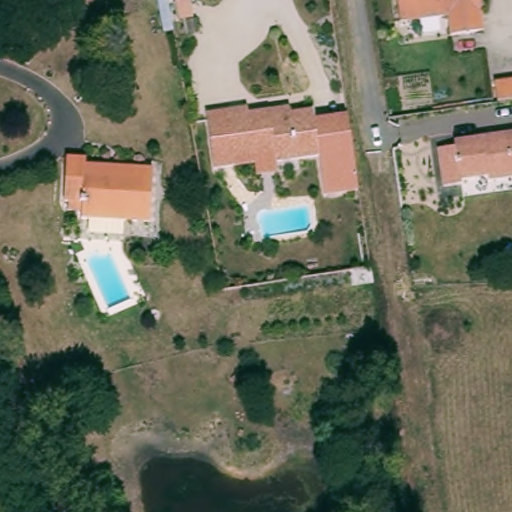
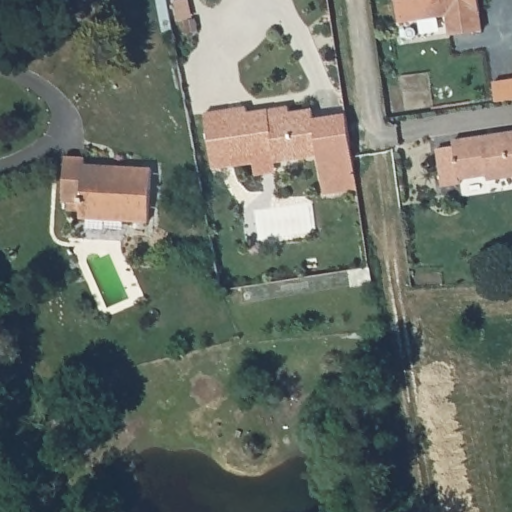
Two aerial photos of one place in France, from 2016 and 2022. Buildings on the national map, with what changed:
unchanged [(484,31),(450,36),(447,17),(399,24),(396,0),(479,0),(484,31)]
unchanged [(512,79),(512,99),(503,100),(500,80),(512,79)]
unchanged [(254,111),(276,107),(277,112),(318,106),(319,115),(352,110),(359,155),(364,186),(331,191),(325,154),(281,161),(280,151),(241,157),(241,166),(220,169),(218,141),(215,112),(234,109),(253,106),(254,111)]
unchanged [(462,142),(512,135),(512,181),(496,183),(495,177),(467,180),(468,187),(445,190),(441,152),(463,150),(462,142)]
unchanged [(69,196),(70,151),(94,152),(94,162),(156,166),(154,222),(84,218),(85,197),(69,196)]

